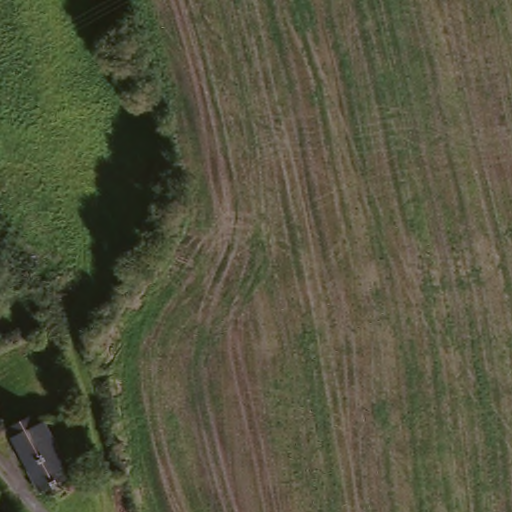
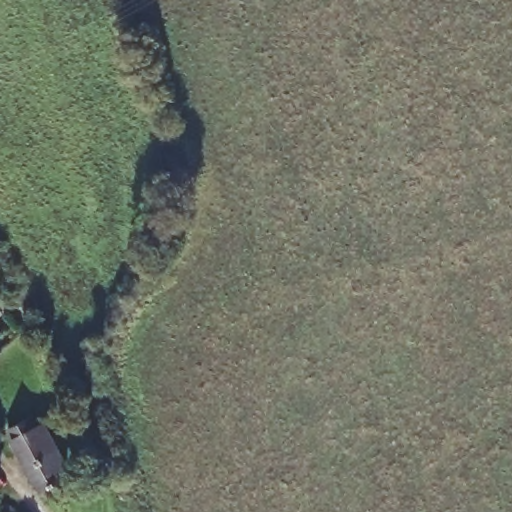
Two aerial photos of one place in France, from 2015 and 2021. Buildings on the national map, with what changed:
unchanged [(34,492),(0,433),(1,433),(10,428),(26,418),(61,477),(34,492)]

